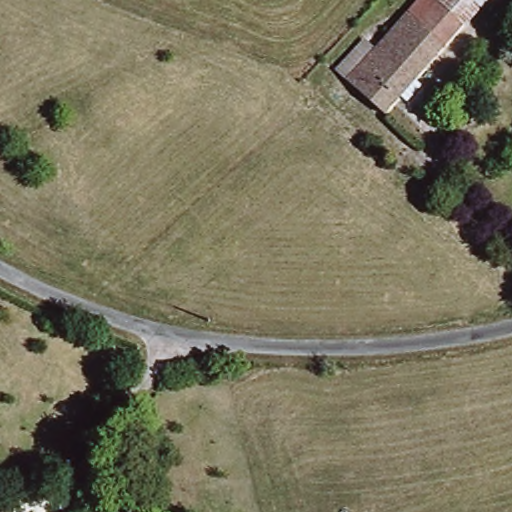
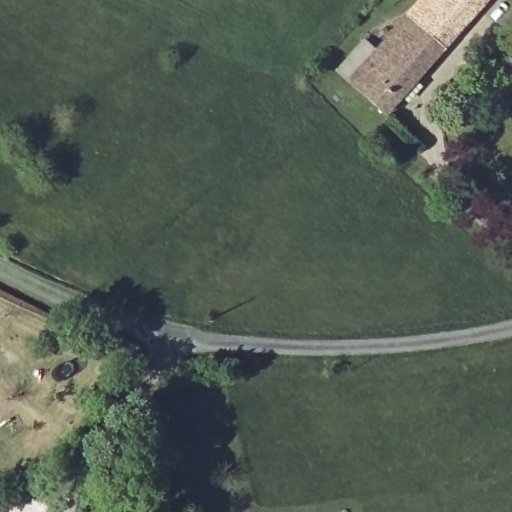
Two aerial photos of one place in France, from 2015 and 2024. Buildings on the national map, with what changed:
unchanged [(399,95),(382,113),(347,79),(420,0),(489,0),(415,79),(419,82),(403,100),(399,95)]

